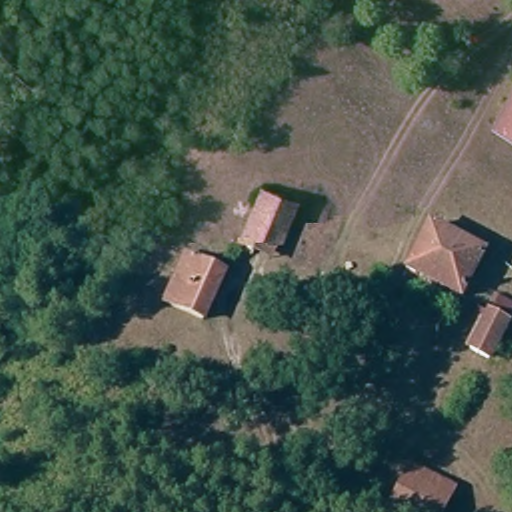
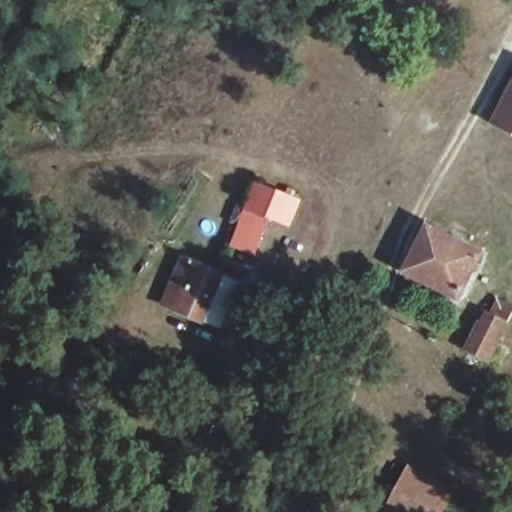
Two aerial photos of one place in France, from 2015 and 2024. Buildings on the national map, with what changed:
unchanged [(512,85),(512,130),(493,121),(512,85)]
unchanged [(259,188),(292,208),(265,259),(234,242),(259,188)]
unchanged [(459,295),(406,270),(427,227),(480,254),(459,295)]
unchanged [(218,277),(201,314),(165,298),(182,261),(218,277)]
unchanged [(508,322),(491,361),(466,348),(484,310),(508,322)]
unchanged [(449,485),(438,512),(382,512),(406,464),(449,485)]

